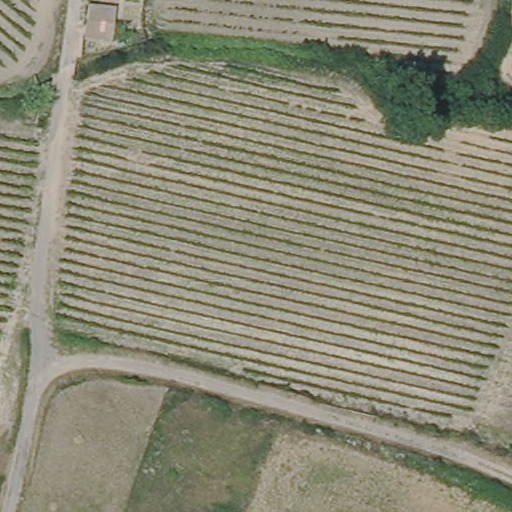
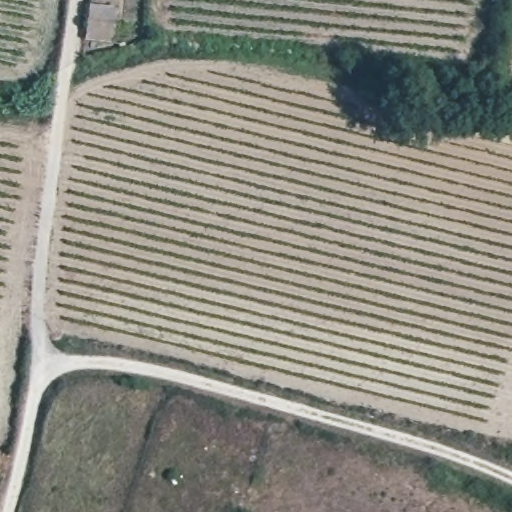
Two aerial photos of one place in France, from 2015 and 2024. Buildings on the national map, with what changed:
unchanged [(117,9),(113,40),(85,36),(87,20),(90,5),(117,9)]

